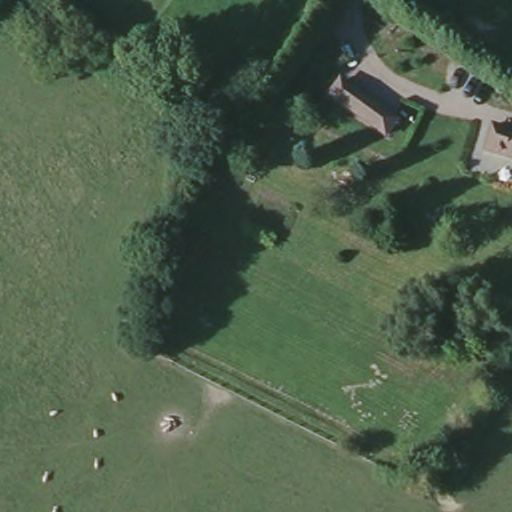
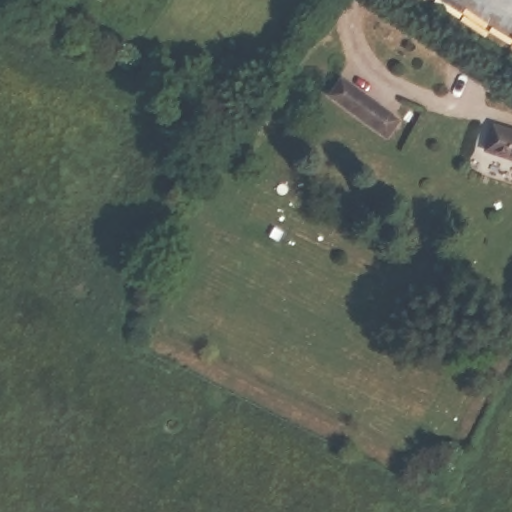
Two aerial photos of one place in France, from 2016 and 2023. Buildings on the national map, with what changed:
unchanged [(329,97),(343,80),(397,121),(382,137),(329,97)]
unchanged [(512,159),(488,152),(495,127),(512,133),(512,159)]
unchanged [(236,128),(250,132),(242,157),(228,153),(236,128)]

